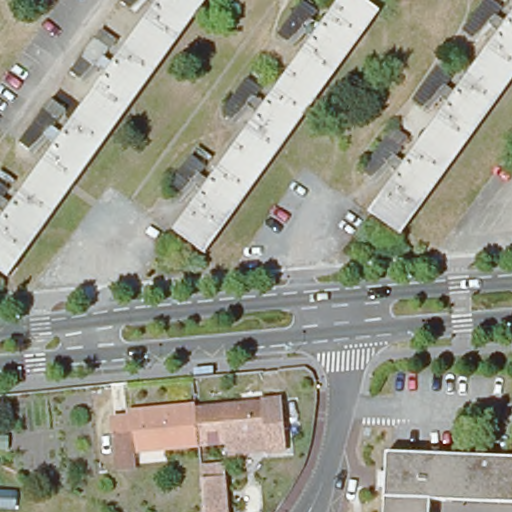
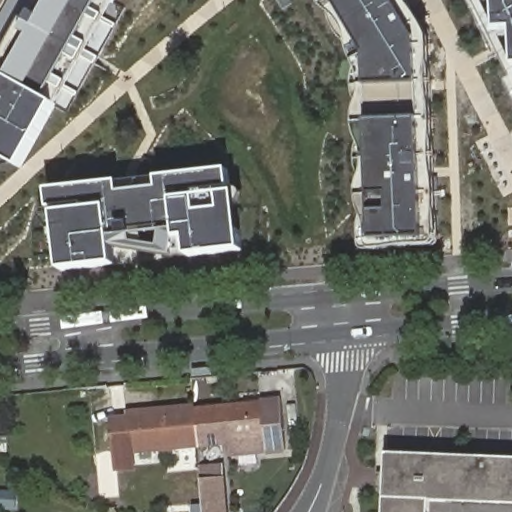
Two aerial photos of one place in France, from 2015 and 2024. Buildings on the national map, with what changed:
new [(34,40),(27,35),(39,15),(45,18),(55,0),(104,0),(55,102),(59,109),(25,171),(0,157),(0,92),(1,93),(34,40)]
demolished [(8,273),(10,275),(8,278),(0,272),(0,225),(163,0),(206,0),(8,273)]
new [(115,4),(108,0),(118,0),(115,4)]
demolished [(130,9),(121,2),(122,0),(140,0),(130,9)]
demolished [(341,0),(364,0),(379,11),(376,15),(374,13),(205,249),(208,251),(205,254),(171,229),(173,226),(177,228),(341,0)]
demolished [(317,11),(309,22),(287,41),(276,34),(300,0),(302,0),(317,11)]
new [(409,0),(430,38),(431,88),(433,106),(436,166),(437,194),(437,244),(433,250),(377,253),(365,250),(361,226),(357,195),(357,181),(352,164),(357,142),(359,126),(357,104),(352,94),(348,75),(349,63),(349,57),(346,47),(343,41),(335,34),(329,16),(325,5),(324,0),(409,0)]
new [(501,29),(498,0),(512,0),(512,28),(501,29)]
demolished [(498,13),(492,21),(467,43),(457,36),(482,2),(498,13)]
demolished [(512,16),(512,76),(397,235),(401,238),(397,241),(362,217),(365,213),(368,215),(512,16)]
demolished [(110,48),(103,58),(79,79),(70,72),(95,37),(110,48)]
demolished [(447,83),(441,90),(417,113),(407,106),(432,72),(447,83)]
demolished [(262,88),(254,99),(231,118),(221,111),(246,76),(262,88)]
demolished [(60,118),(51,131),(29,149),(20,143),(45,107),(60,118)]
demolished [(397,153),(392,160),(366,184),(356,177),(382,141),(397,153)]
demolished [(206,165),(198,176),(176,196),(166,188),(191,153),(206,165)]
new [(119,181),(156,177),(229,169),(232,193),(236,193),(242,250),(189,256),(187,239),(178,240),(170,241),(170,257),(113,248),(115,264),(62,270),(56,213),(60,213),(59,209),(50,210),(48,190),(119,181)]
demolished [(4,195),(0,199),(0,181),(10,188),(4,195)]
unchanged [(193,407),(243,403),(260,401),(279,400),(279,409),(283,444),(265,445),(264,438),(196,443),(196,441),(193,407)]
unchanged [(134,465),(115,467),(113,423),(112,417),(126,416),(126,412),(146,410),(193,407),(196,441),(196,443),(133,449),(134,465)]
unchanged [(432,501),(431,512),(385,512),(386,487),(378,487),(379,470),(387,470),(388,452),(512,458),(512,504),(432,501)]
unchanged [(217,476),(221,512),(203,512),(200,477),(217,476)]

